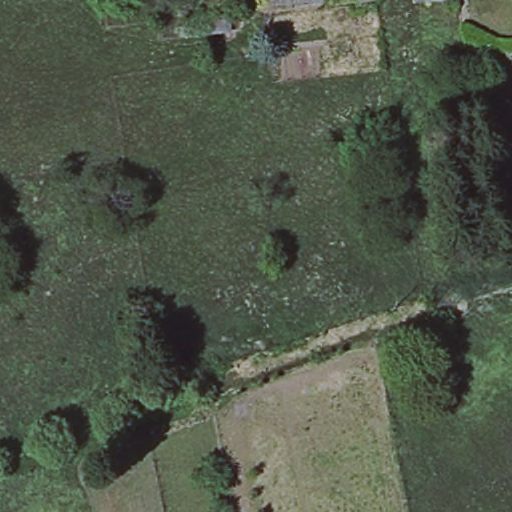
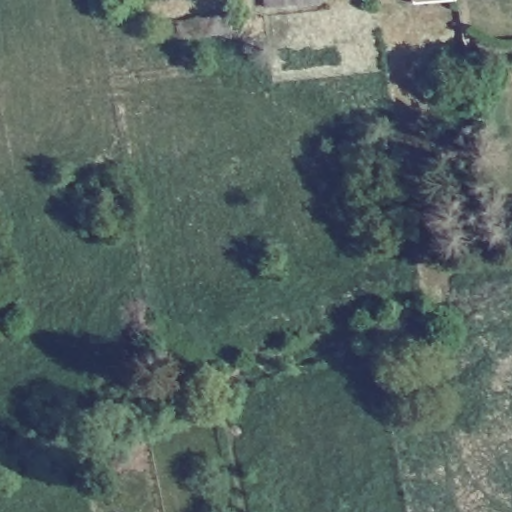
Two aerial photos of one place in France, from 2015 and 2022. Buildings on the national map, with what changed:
unchanged [(318,1),(263,6),(263,0),(318,0),(318,1)]

